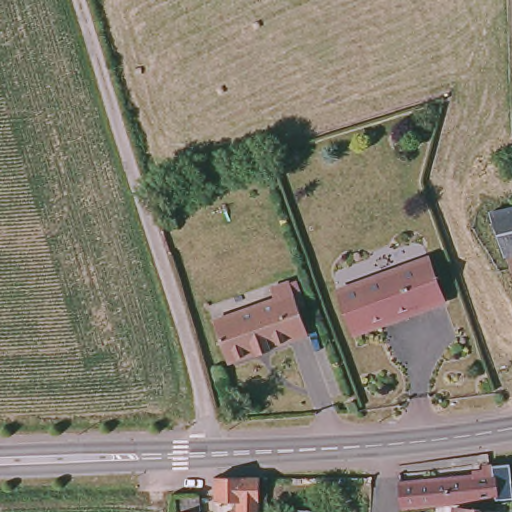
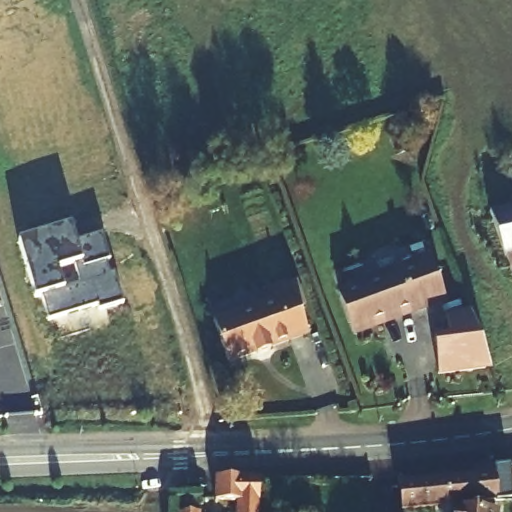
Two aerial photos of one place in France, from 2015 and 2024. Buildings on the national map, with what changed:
unchanged [(501,253),(498,254),(488,210),(512,204),(512,287),(501,253)]
new [(76,243),(104,234),(123,305),(99,311),(98,305),(49,319),(42,295),(35,295),(18,239),(72,224),(76,243)]
unchanged [(353,318),(339,280),(429,247),(445,290),(397,308),(354,324),(353,318)]
unchanged [(280,291),(276,280),(295,274),(314,325),(275,339),(276,342),(261,347),(260,344),(233,354),(218,313),(280,291)]
new [(434,335),(450,333),(444,313),(471,310),(484,336),(492,369),(438,375),(434,335)]
unchanged [(482,473),(481,465),(498,463),(507,462),(507,465),(507,477),(491,478),(493,499),(487,499),(399,510),(397,482),(482,473)]
unchanged [(254,512),(233,512),(233,503),(212,501),(211,477),(256,478),(254,512)]
unchanged [(474,512),(451,512),(452,509),(474,512)]

